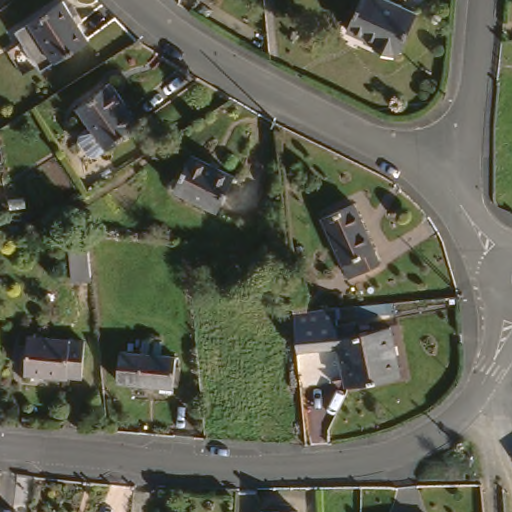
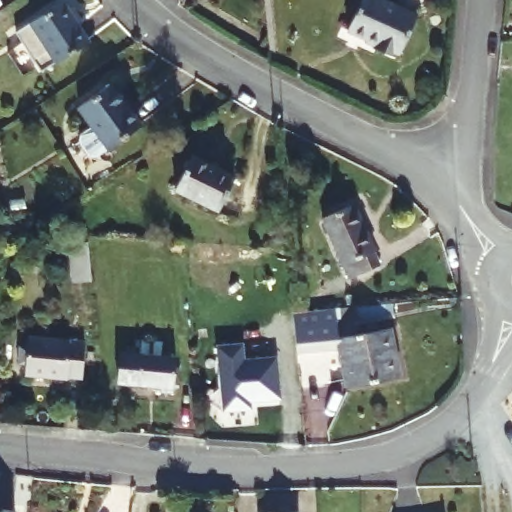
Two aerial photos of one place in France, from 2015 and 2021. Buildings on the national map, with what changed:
unchanged [(25,28),(68,0),(74,0),(98,36),(50,67),(25,28)]
unchanged [(398,55),(394,53),(391,59),(373,50),(375,45),(348,32),(362,0),(383,0),(415,16),(398,55)]
unchanged [(107,147),(95,156),(89,155),(80,142),(81,135),(93,127),(78,107),(110,84),(140,125),(108,148),(107,147)]
unchanged [(175,190),(191,155),(234,176),(218,210),(175,190)]
unchanged [(321,219),(353,205),(374,250),(373,251),(379,264),(349,278),(321,219)]
unchanged [(90,281),(72,282),(68,245),(86,244),(90,281)]
unchanged [(338,348),(296,352),(293,312),(289,282),(304,281),(307,311),(333,309),(336,326),(354,322),(356,335),(390,327),(399,376),(346,387),(338,348)]
unchanged [(24,375),(25,364),(16,363),(18,346),(26,347),(28,337),(84,342),(81,378),(65,377),(65,378),(24,375)]
new [(243,339),(245,361),(276,357),(281,398),(252,402),(253,409),(224,412),(216,346),(243,339)]
unchanged [(173,388),(118,383),(120,353),(140,355),(141,340),(162,342),(161,357),(175,358),(173,388)]
unchanged [(277,505),(287,505),(287,512),(277,512),(277,505)]
unchanged [(0,510),(17,511),(17,512),(0,512),(0,510)]

